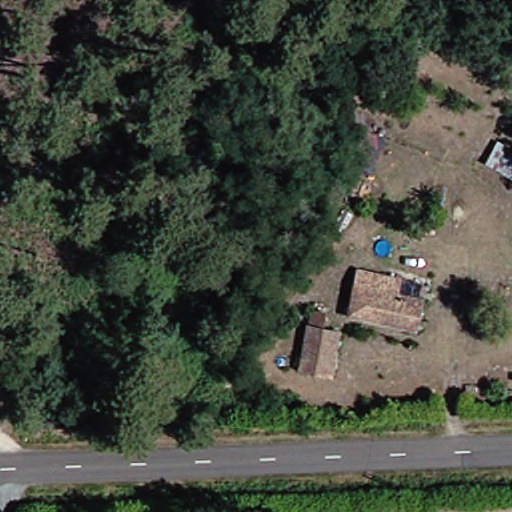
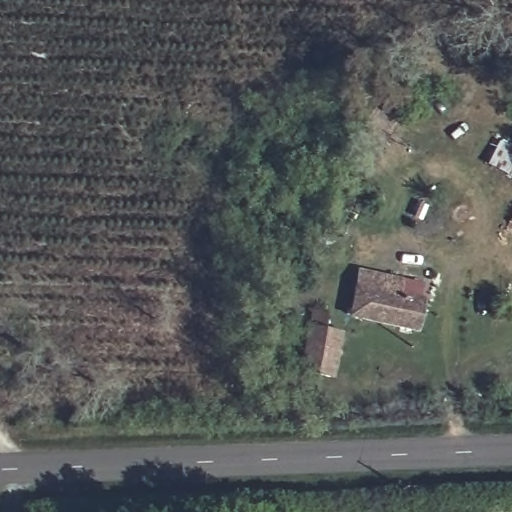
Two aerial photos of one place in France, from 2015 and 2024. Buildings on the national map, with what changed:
unchanged [(354,271),(387,277),(385,296),(407,298),(405,321),(350,313),(354,271)]
unchanged [(334,331),(327,372),(298,367),(303,326),(334,331)]

